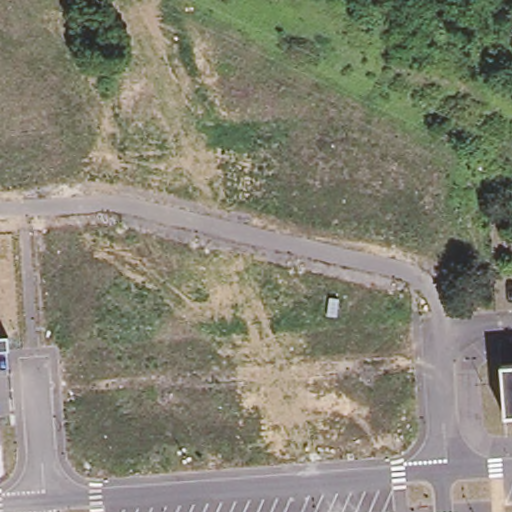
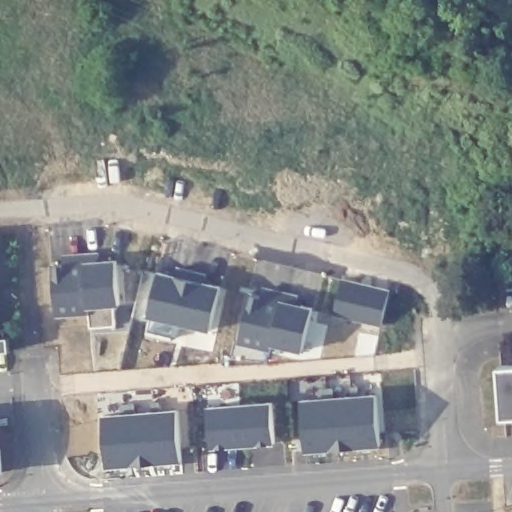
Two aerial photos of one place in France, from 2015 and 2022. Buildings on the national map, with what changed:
new [(54,267),(71,265),(70,257),(100,255),(101,263),(118,262),(121,305),(90,307),(90,314),(58,316),(54,267)]
new [(149,316),(160,273),(176,277),(178,269),(207,276),(205,284),(222,288),(212,331),(149,316)]
new [(334,315),(342,281),(390,292),(382,326),(334,315)]
new [(304,352),(273,345),(272,351),(240,344),(251,295),(267,299),(269,291),(299,298),(297,306),(313,309),(304,352)]
unchanged [(8,338),(9,351),(0,351),(0,338),(8,338)]
unchanged [(505,417),(502,366),(512,365),(512,416),(505,417)]
new [(377,396),(381,446),(306,451),(303,401),(377,396)]
new [(276,442),(212,448),(209,408),(273,403),(276,442)]
new [(183,461),(108,467),(104,417),(179,411),(183,461)]
unchanged [(1,478),(0,478),(0,467),(1,478)]

